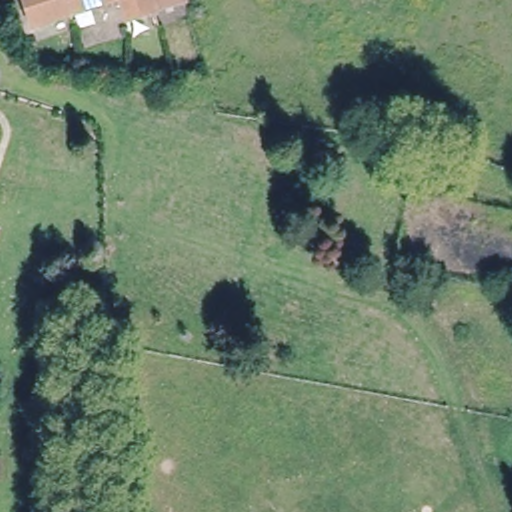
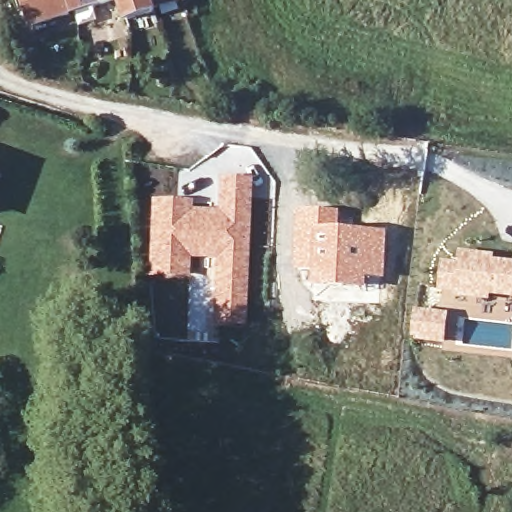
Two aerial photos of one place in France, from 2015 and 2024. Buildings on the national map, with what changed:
unchanged [(28,20),(22,0),(93,0),(28,20)]
unchanged [(154,6),(124,15),(119,0),(152,0),(154,6)]
new [(190,275),(148,275),(151,198),(193,200),(192,208),(217,210),(218,177),(252,179),(247,325),(212,325),(215,258),(190,257),(190,275)]
new [(296,210),(342,211),(341,229),(388,233),(386,280),(368,280),(367,289),(311,286),(312,271),(293,269),(296,210)]
new [(458,262),(460,251),(496,255),(496,260),(512,262),(512,301),(492,299),(491,302),(469,299),(468,310),(450,309),(449,313),(436,311),(441,261),(458,262)]
new [(415,308),(436,311),(449,313),(446,345),(411,340),(415,308)]

